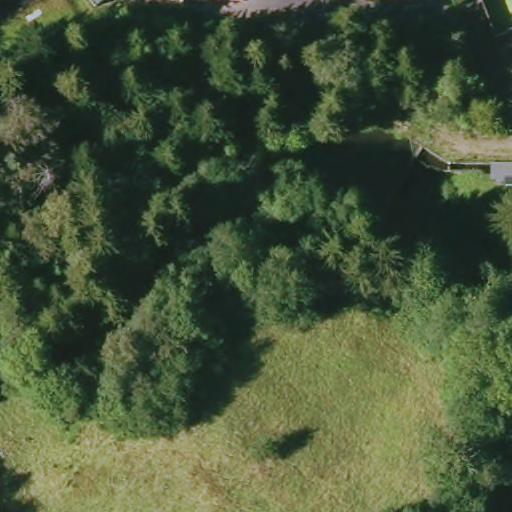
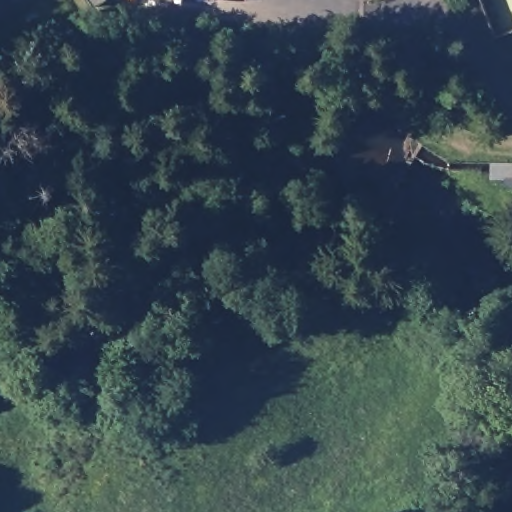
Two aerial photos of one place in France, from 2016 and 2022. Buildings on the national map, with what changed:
unchanged [(91,12),(83,0),(98,0),(101,5),(91,12)]

